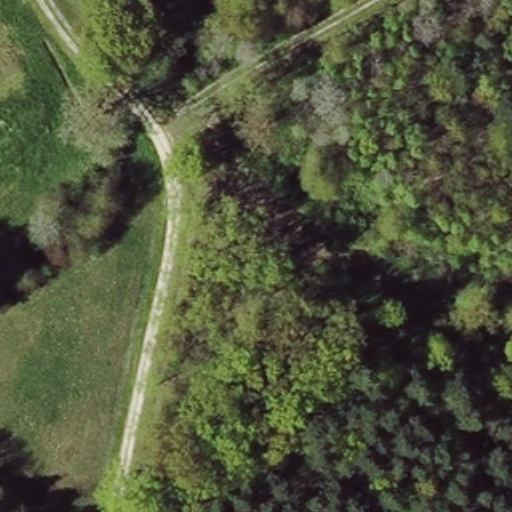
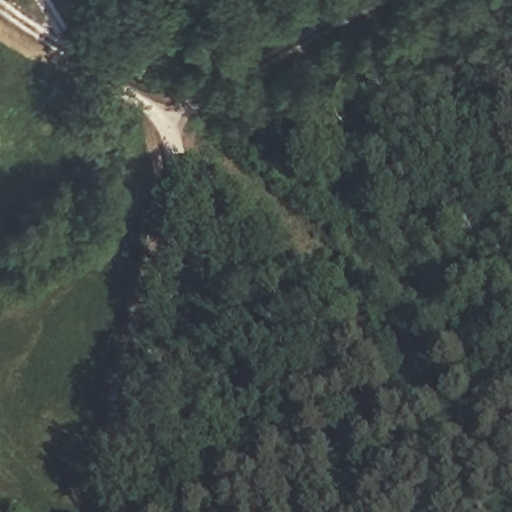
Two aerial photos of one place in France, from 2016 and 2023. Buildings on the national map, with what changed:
[]

